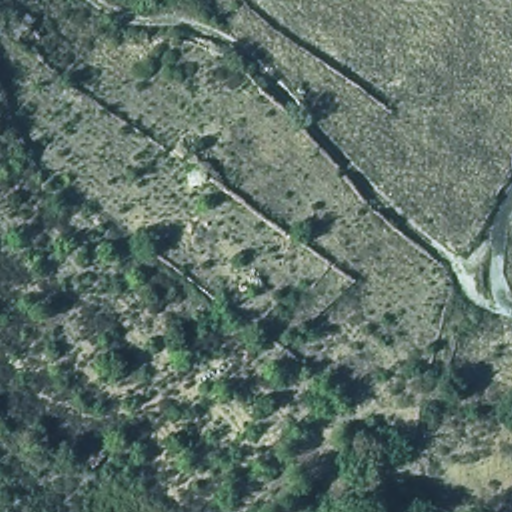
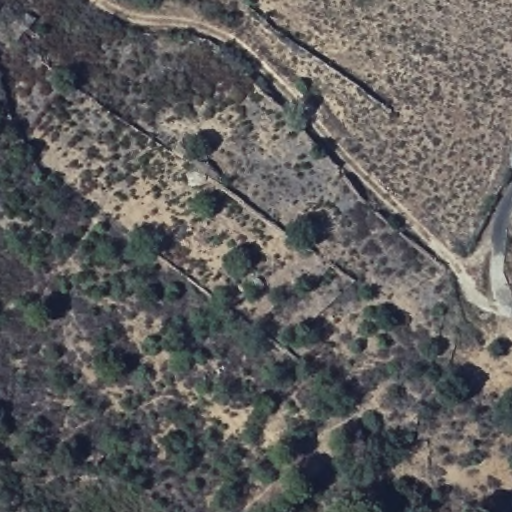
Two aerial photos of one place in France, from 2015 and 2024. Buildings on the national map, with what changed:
unchanged [(205,163),(211,176),(187,185),(184,174),(205,163)]

